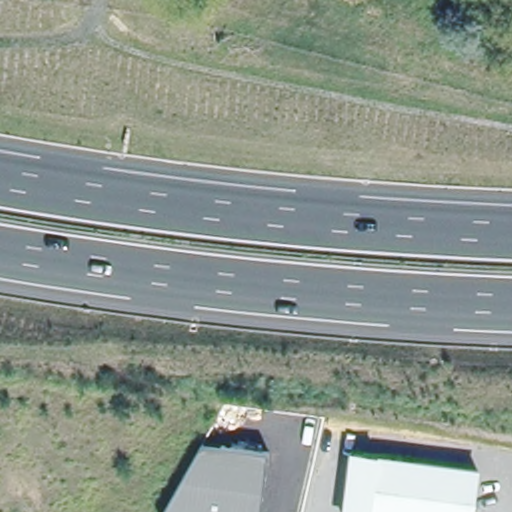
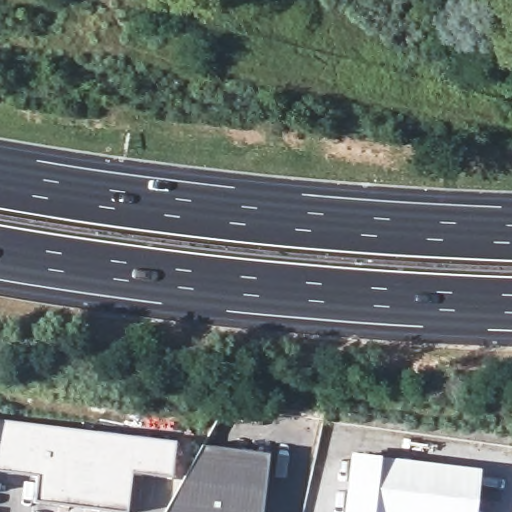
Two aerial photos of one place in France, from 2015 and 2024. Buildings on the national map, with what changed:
new [(38,476),(0,470),(0,420),(175,442),(170,479),(131,473),(126,512),(108,512),(35,502),(38,476)]
unchanged [(264,512),(166,512),(205,443),(272,452),(264,512)]
unchanged [(470,512),(344,512),(352,455),(476,472),(470,512)]

